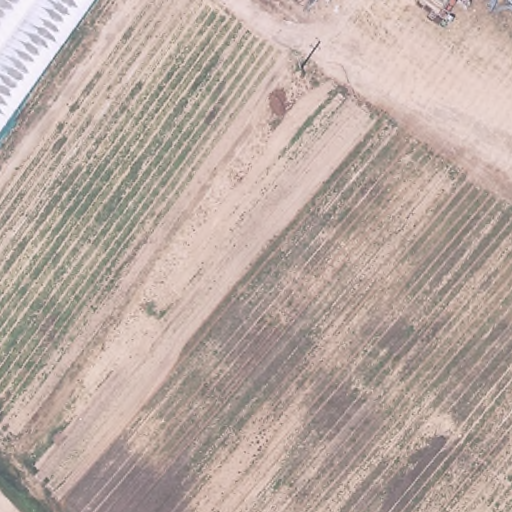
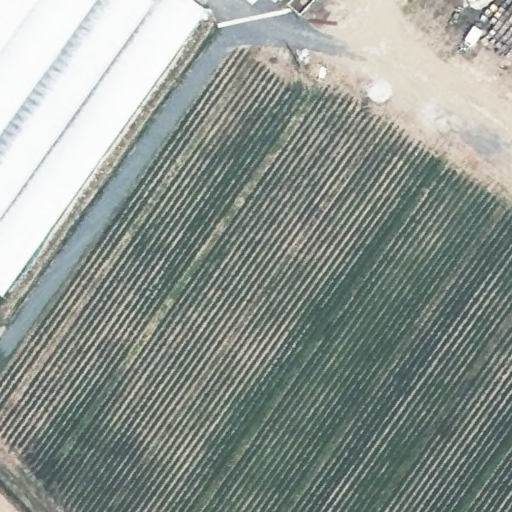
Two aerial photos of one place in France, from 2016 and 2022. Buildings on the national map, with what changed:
unchanged [(100,0),(0,140),(0,0),(100,0)]
new [(206,14),(2,297),(0,296),(0,140),(100,0),(220,0),(210,16),(206,14)]

